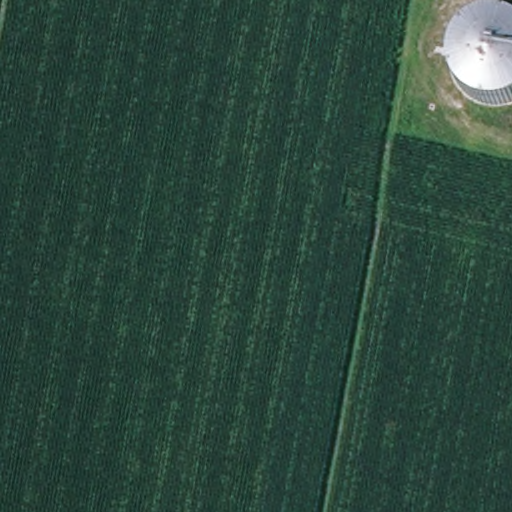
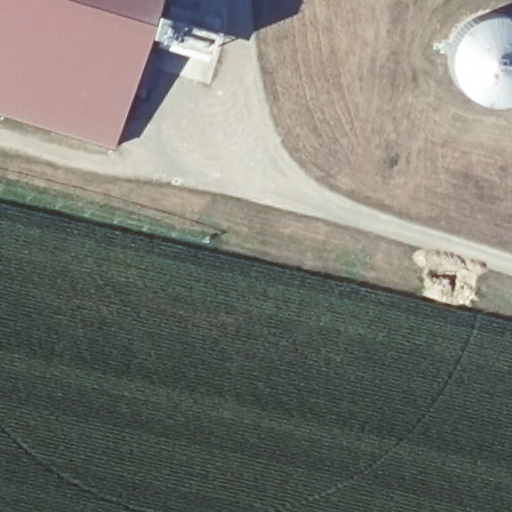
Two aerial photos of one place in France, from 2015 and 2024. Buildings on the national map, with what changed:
new [(0,0),(156,0),(154,10),(213,26),(207,49),(148,33),(144,47),(159,53),(149,86),(133,81),(113,146),(0,113),(0,0)]
unchanged [(511,101),(500,104),(488,104),(475,100),(465,95),(457,86),(452,76),(449,63),(449,51),(452,39),(459,26),(469,18),(480,13),(492,11),(504,13),(512,16),(512,100),(511,101)]

